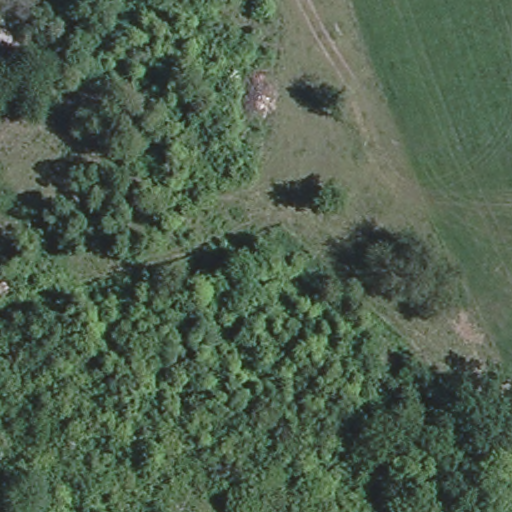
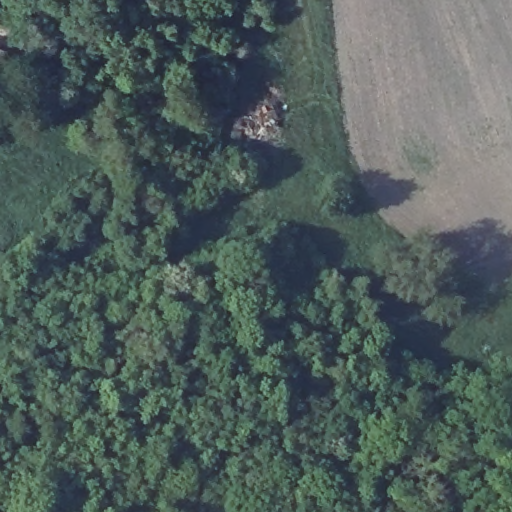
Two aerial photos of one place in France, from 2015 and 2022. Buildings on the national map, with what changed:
unchanged [(11,59),(0,58),(0,14),(15,15),(11,59)]

